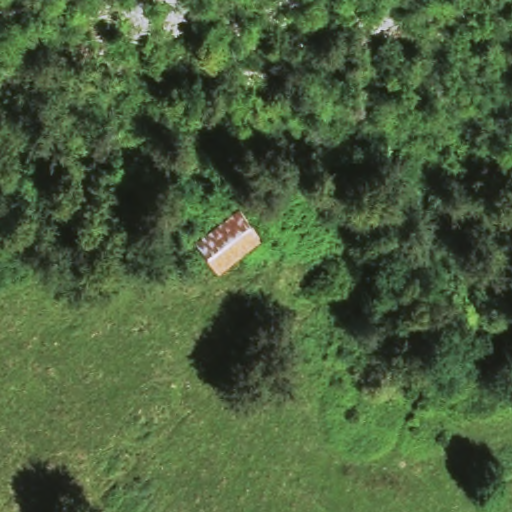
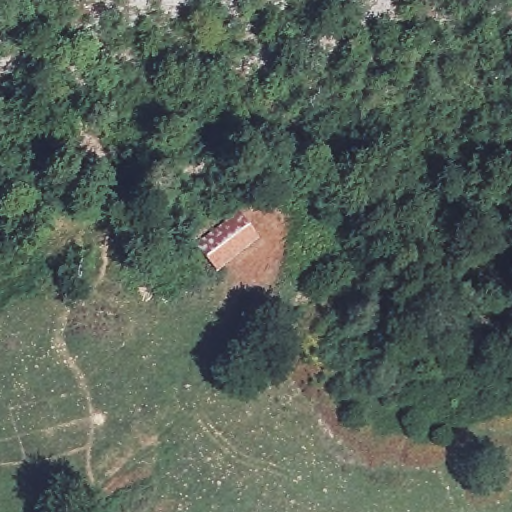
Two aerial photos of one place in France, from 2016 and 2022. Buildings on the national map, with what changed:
unchanged [(195,245),(239,212),(261,242),(233,265),(217,276),(195,245)]

